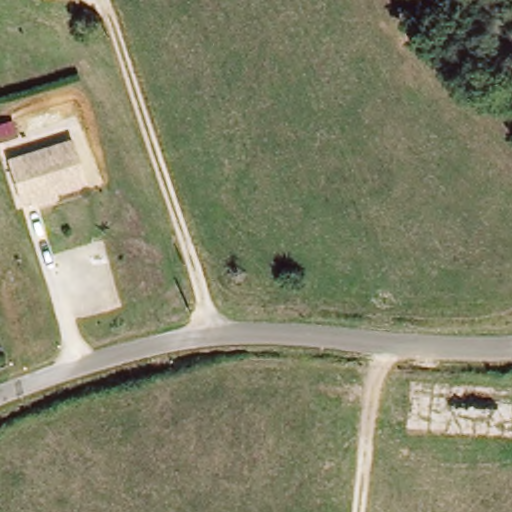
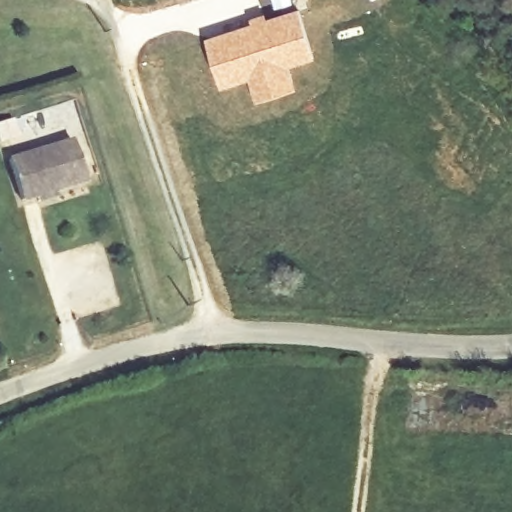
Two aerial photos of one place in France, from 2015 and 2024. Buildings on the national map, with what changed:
new [(299,8),(316,57),(292,65),(298,87),(258,101),(250,79),(222,87),(206,36),(299,8)]
unchanged [(36,194),(21,199),(7,157),(71,136),(85,177),(54,187),(56,193),(38,200),(36,194)]

